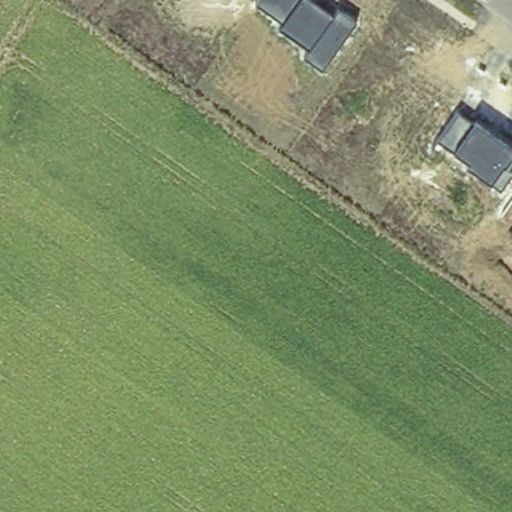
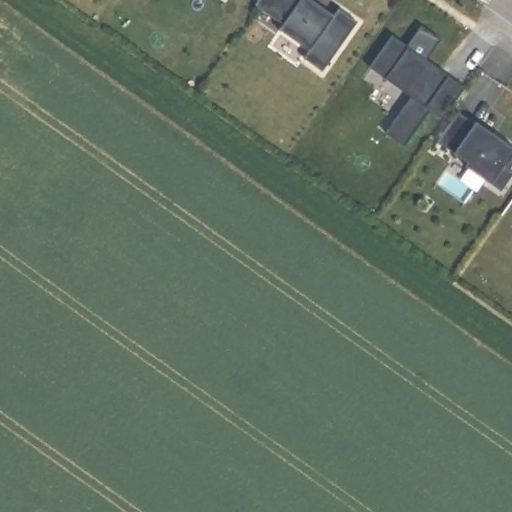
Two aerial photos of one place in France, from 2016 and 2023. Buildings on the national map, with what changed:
unchanged [(334,16),(337,11),(356,24),(323,71),(304,58),(310,51),(277,29),(284,21),(255,5),(259,0),(311,0),(334,16)]
new [(448,116),(436,109),(411,145),(388,129),(412,94),(371,64),(392,34),(466,86),(448,116)]
unchanged [(509,168),(512,171),(512,173),(502,189),(491,183),(466,167),(468,163),(452,152),(435,142),(456,114),(473,126),(477,121),(512,145),(512,160),(509,168)]

